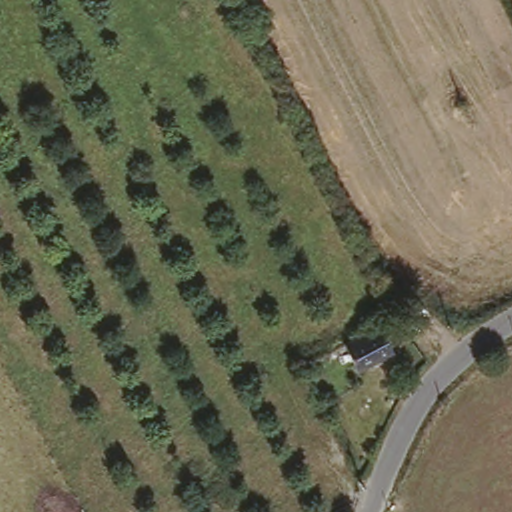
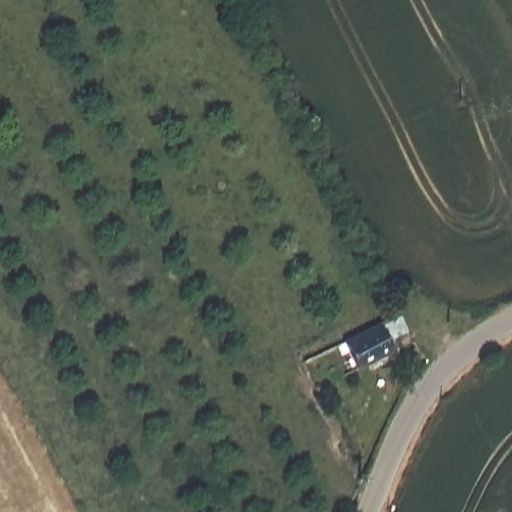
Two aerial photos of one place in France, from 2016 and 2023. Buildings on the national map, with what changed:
unchanged [(390,321),(399,338),(382,346),(388,359),(355,375),(341,346),(374,330),(390,321)]

